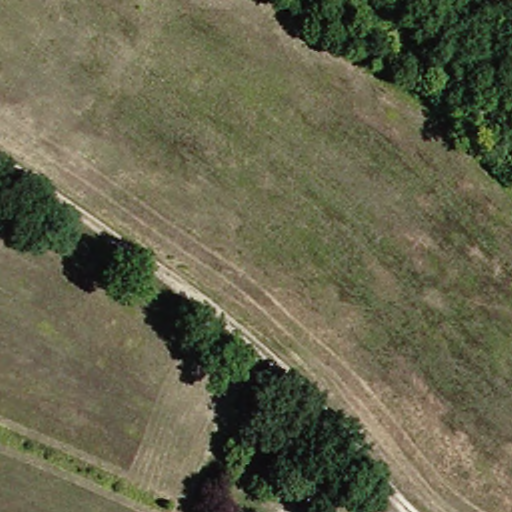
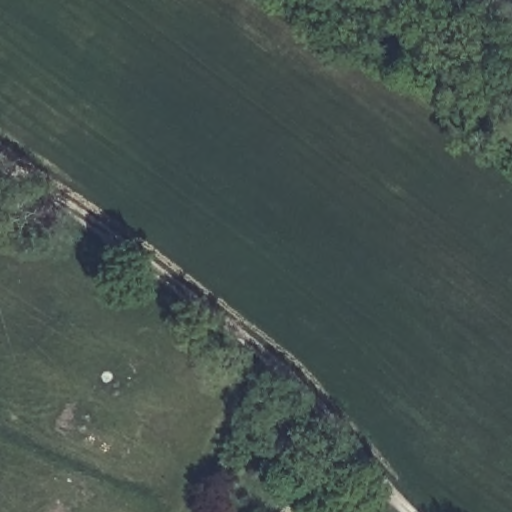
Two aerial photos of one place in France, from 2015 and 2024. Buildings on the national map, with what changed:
unchanged [(356,512),(363,504),(371,512),(356,512)]

